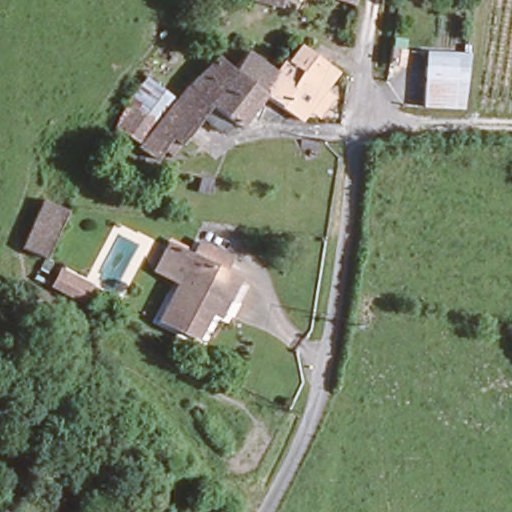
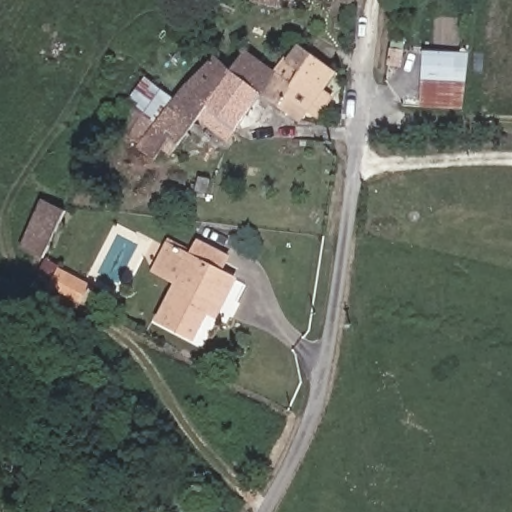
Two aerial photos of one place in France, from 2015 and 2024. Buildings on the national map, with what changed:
unchanged [(276,1),(274,0),(276,0),(276,1)]
unchanged [(295,46),(334,71),(300,116),(263,92),(278,71),(295,46)]
unchanged [(175,105),(218,50),(237,63),(248,50),(278,71),(263,92),(233,71),(208,103),(194,122),(175,105)]
unchanged [(429,55),(460,57),(457,102),(426,100),(429,55)]
unchanged [(261,95),(238,125),(208,103),(233,71),(263,92),(261,95)]
unchanged [(175,105),(194,122),(173,149),(165,144),(157,154),(141,142),(143,139),(119,121),(132,100),(146,77),(170,94),(156,116),(163,121),(175,105)]
unchanged [(60,204),(38,252),(19,242),(40,195),(60,204)]
unchanged [(227,257),(221,272),(235,279),(224,302),(214,296),(194,337),(159,320),(182,278),(158,267),(170,243),(195,255),(200,244),(227,257)]

